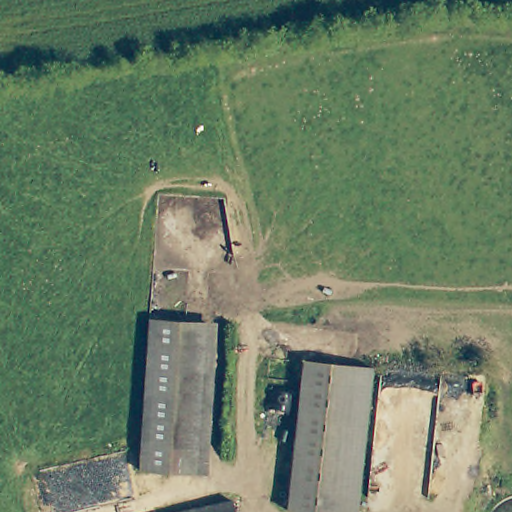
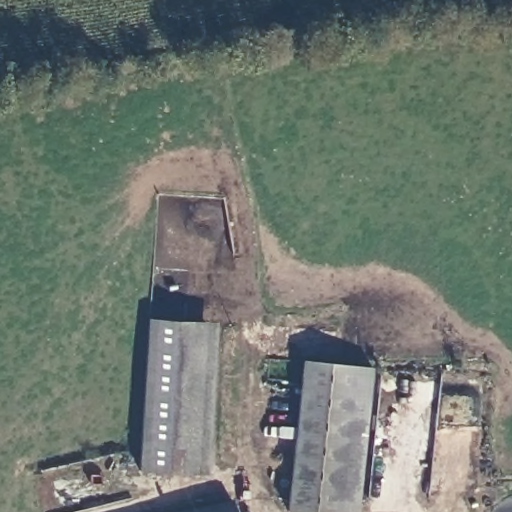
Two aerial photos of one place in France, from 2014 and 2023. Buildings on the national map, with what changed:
unchanged [(211,323),(201,473),(144,470),(145,447),(155,320),(190,322),(211,323)]
unchanged [(371,370),(356,512),(298,512),(288,511),(305,362),(369,370),(371,370)]
unchanged [(160,511),(237,496),(240,512),(155,512),(160,511)]

